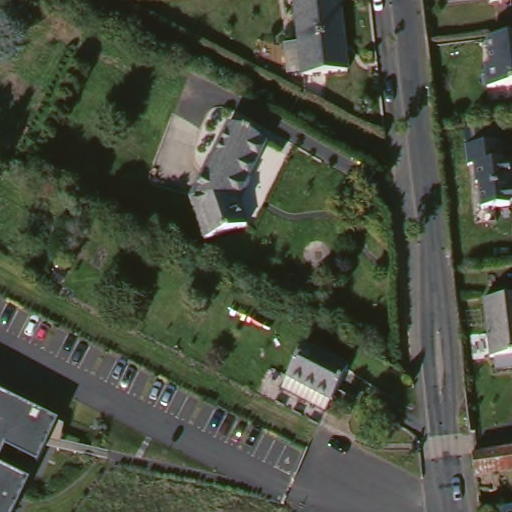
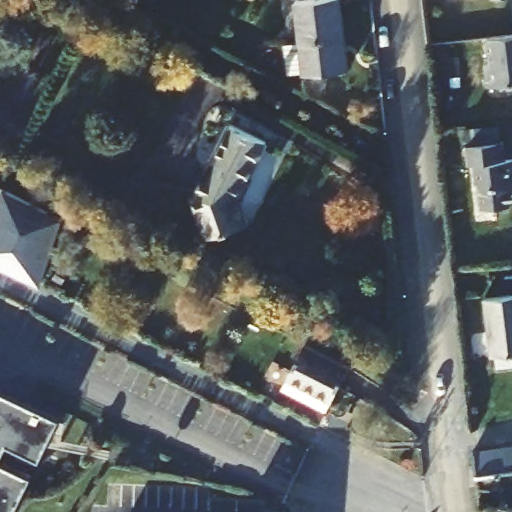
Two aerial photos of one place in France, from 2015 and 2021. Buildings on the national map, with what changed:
unchanged [(294,40),(310,38),(306,0),(350,0),(359,66),(314,72),(314,68),(298,70),(294,40)]
unchanged [(492,88),(490,65),(495,65),(492,39),(512,37),(512,86),(492,88)]
unchanged [(204,194),(239,124),(278,143),(248,200),(257,225),(214,240),(201,199),(204,194)]
unchanged [(510,140),(512,155),(512,198),(511,198),(481,202),(474,144),(510,140)]
new [(39,288),(0,269),(0,197),(3,191),(69,220),(39,288)]
unchanged [(504,365),(503,352),(500,353),(494,295),(512,293),(512,365),(504,365)]
unchanged [(296,380),(302,368),(319,335),(365,359),(347,391),(341,403),(296,380)]
unchanged [(38,458),(8,445),(0,462),(0,391),(61,417),(38,458)]
unchanged [(512,450),(512,474),(485,478),(482,454),(512,450)]
unchanged [(14,512),(0,512),(0,467),(29,480),(14,512)]

